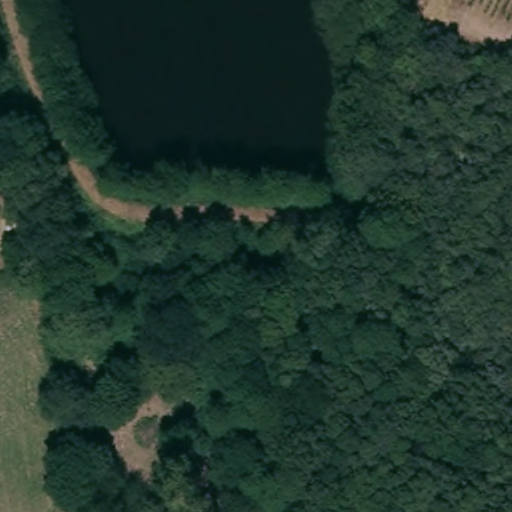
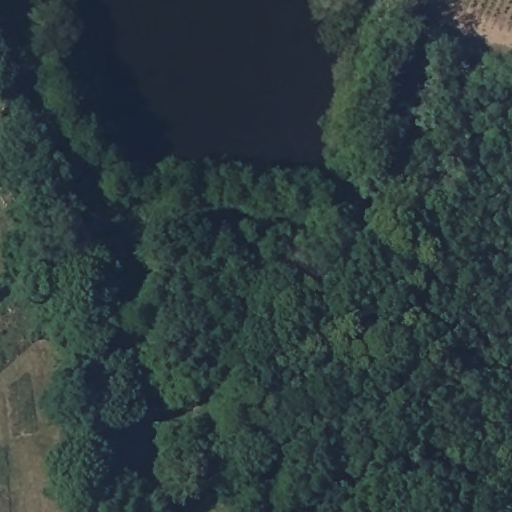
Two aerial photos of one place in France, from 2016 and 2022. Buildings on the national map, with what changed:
[]

